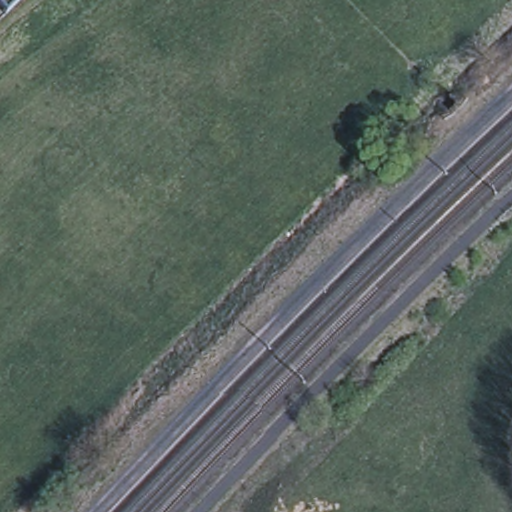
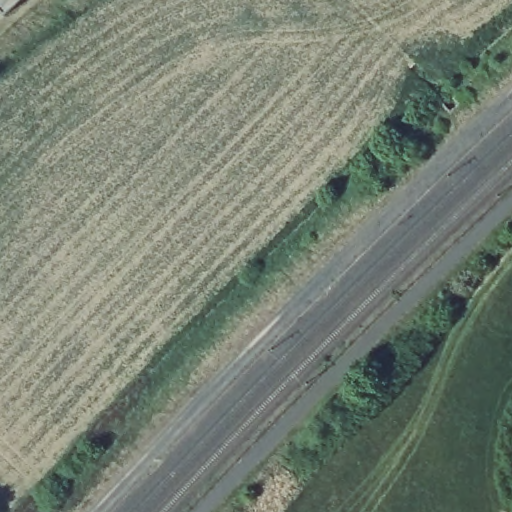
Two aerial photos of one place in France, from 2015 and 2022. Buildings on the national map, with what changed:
unchanged [(5,15),(0,9),(0,0),(21,0),(5,15)]

